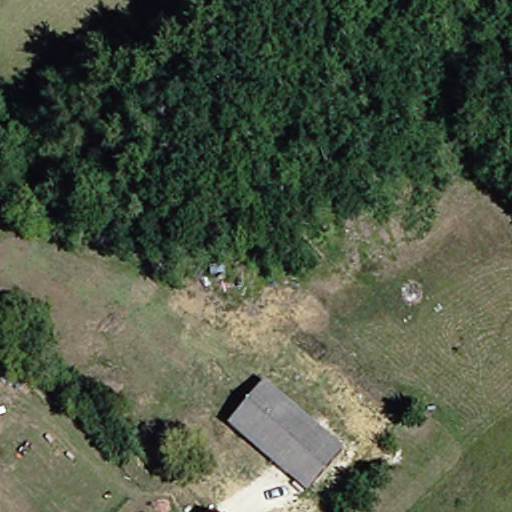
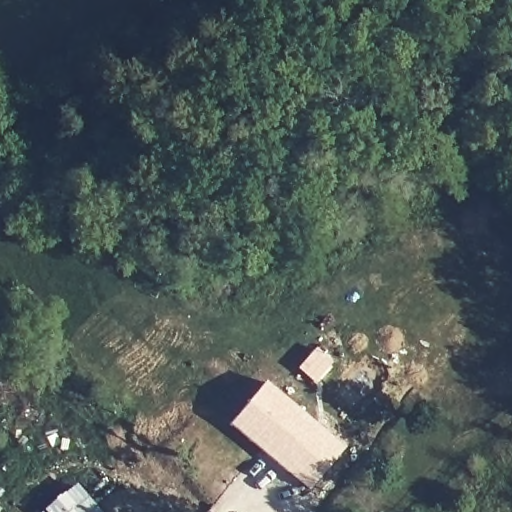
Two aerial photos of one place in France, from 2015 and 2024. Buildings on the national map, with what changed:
unchanged [(232,432),(266,388),(317,428),(282,471),(232,432)]
unchanged [(317,428),(345,450),(310,494),(282,471),(317,428)]
new [(101,512),(43,512),(42,512),(76,483),(101,512)]

